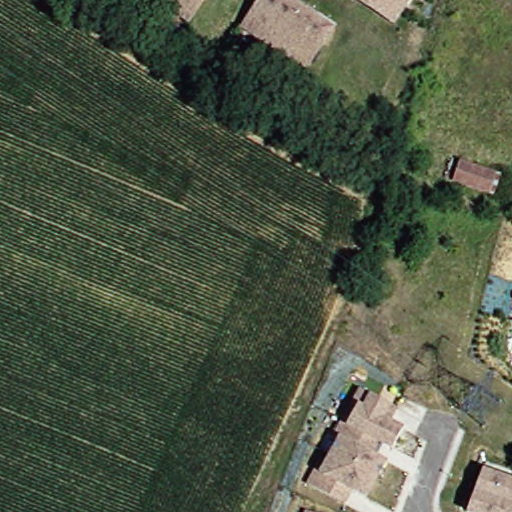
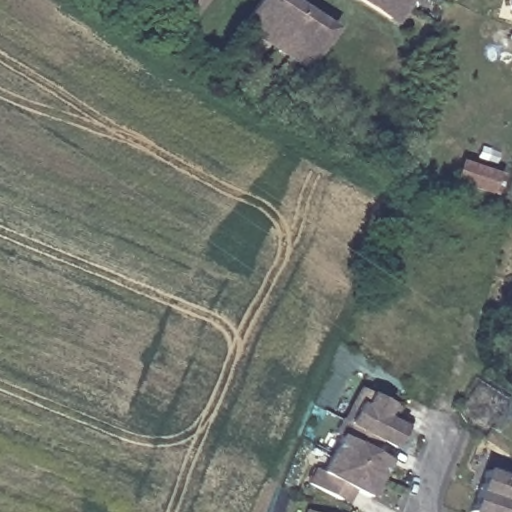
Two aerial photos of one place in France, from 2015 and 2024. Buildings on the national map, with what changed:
unchanged [(162,0),(205,0),(197,13),(193,20),(162,0)]
unchanged [(252,18),(264,0),(297,0),(338,28),(314,62),(310,68),(247,24),(252,18)]
unchanged [(392,19),(364,0),(413,0),(398,23),(392,19)]
unchanged [(470,162),(502,173),(496,191),(464,179),(470,162)]
unchanged [(312,481),(320,466),(324,468),(344,433),(338,430),(346,416),(347,416),(363,384),(393,399),(399,403),(392,416),(406,424),(396,443),(382,435),(375,448),(390,456),(370,493),(356,486),(349,499),(343,496),(312,481)]
unchanged [(479,512),(476,511),(491,470),(512,477),(512,512),(479,512)]
unchanged [(332,512),(314,512),(316,507),(332,512)]

